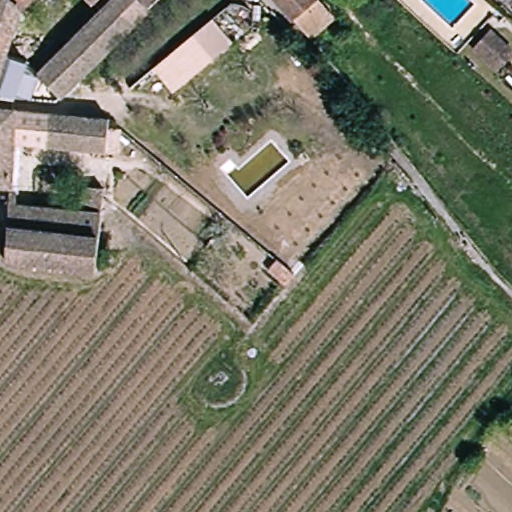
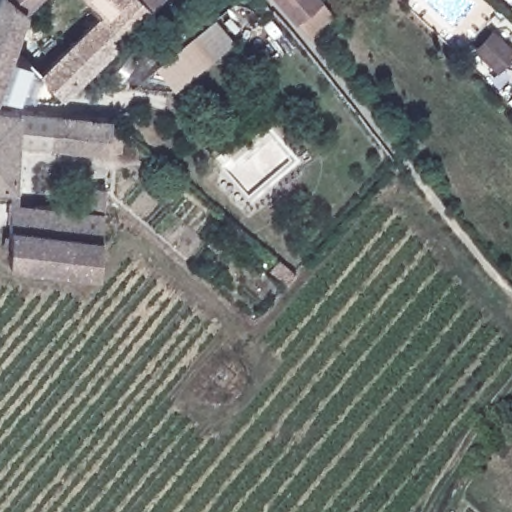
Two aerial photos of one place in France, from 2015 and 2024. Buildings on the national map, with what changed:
unchanged [(0,99),(0,0),(52,0),(42,9),(38,5),(20,22),(13,16),(3,59),(16,63),(19,59),(79,0),(128,0),(143,15),(56,102),(53,105),(13,100),(0,99)]
unchanged [(143,15),(128,0),(159,0),(143,15)]
unchanged [(323,7),(334,20),(309,43),(298,29),(274,0),(317,0),(323,7)]
unchanged [(154,68),(213,18),(234,42),(174,92),(154,68)]
unchanged [(474,49),(491,32),(512,53),(496,70),(474,49)]
unchanged [(12,144),(13,139),(0,138),(0,107),(9,108),(55,114),(106,121),(104,153),(12,144)]
unchanged [(0,185),(0,138),(13,139),(12,144),(8,185),(0,185)]
unchanged [(17,194),(16,205),(83,211),(89,172),(103,174),(101,196),(98,213),(96,236),(3,226),(8,193),(17,194)]
unchanged [(96,236),(94,270),(30,264),(1,261),(3,226),(96,236)]

